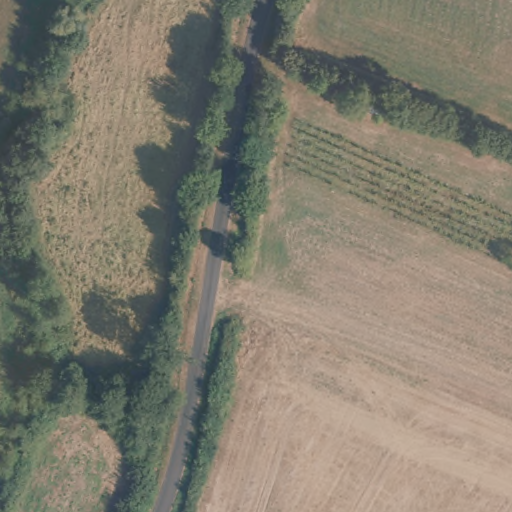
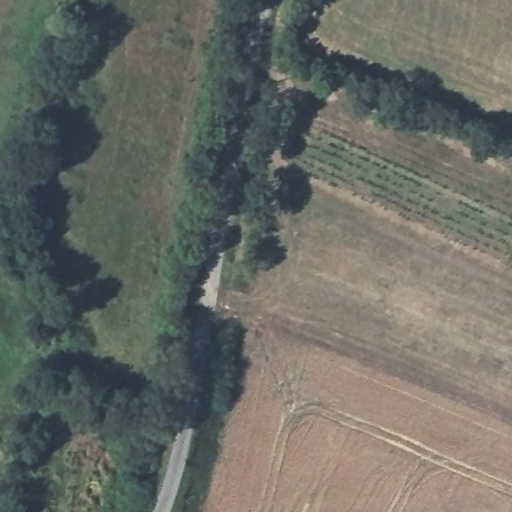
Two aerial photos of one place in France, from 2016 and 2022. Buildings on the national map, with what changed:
unchanged [(386,119),(360,107),(366,93),(392,101),(386,119)]

